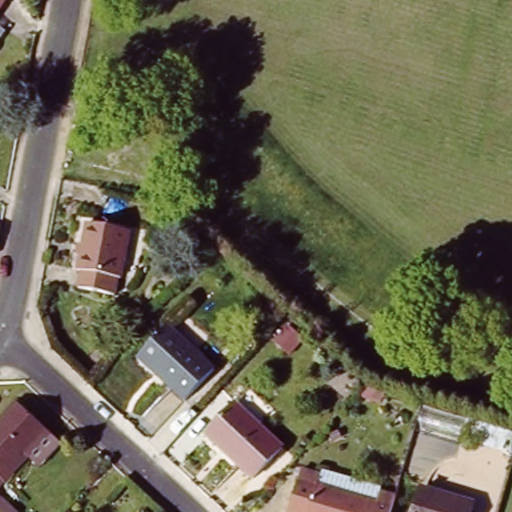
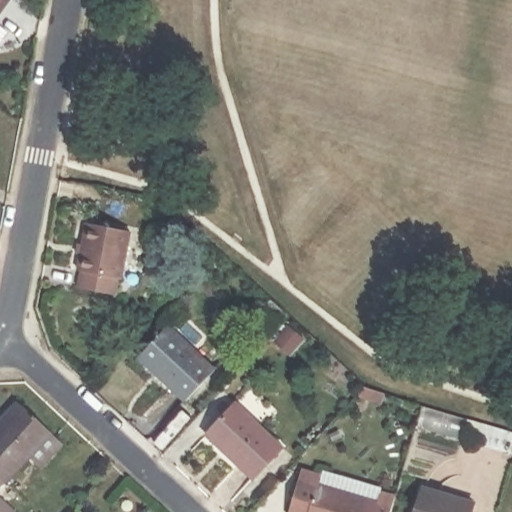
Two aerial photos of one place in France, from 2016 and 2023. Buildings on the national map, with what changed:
unchanged [(0,11),(0,0),(8,0),(0,11)]
unchanged [(0,43),(0,27),(8,32),(0,43)]
unchanged [(83,218),(125,227),(116,274),(112,273),(109,290),(74,283),(78,267),(73,266),(83,218)]
unchanged [(215,370),(186,401),(153,371),(139,358),(143,354),(168,326),(215,370)]
unchanged [(13,399),(44,427),(57,440),(35,463),(22,451),(0,475),(0,413),(13,399)]
unchanged [(283,443),(254,474),(221,443),(206,430),(210,426),(236,399),(283,443)]
unchanged [(512,430),(512,446),(511,449),(499,446),(504,427),(512,430)]
unchanged [(302,465),(321,471),(319,480),(378,497),(381,488),(396,492),(390,512),(290,512),(289,511),(302,465)]
unchanged [(62,477),(75,489),(69,496),(55,483),(62,477)]
unchanged [(474,499),(470,512),(414,512),(423,483),(474,499)]
unchanged [(0,512),(0,506),(6,512),(0,512)]

